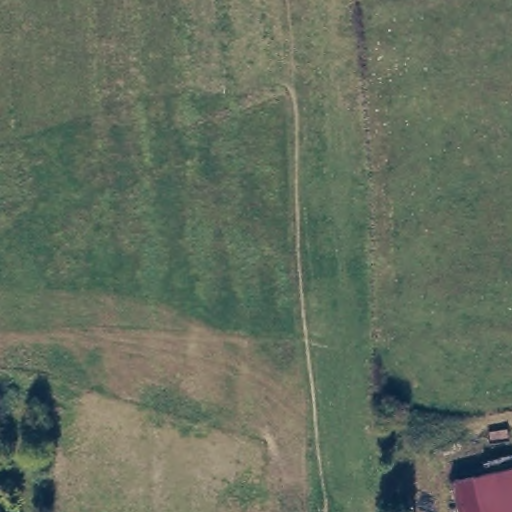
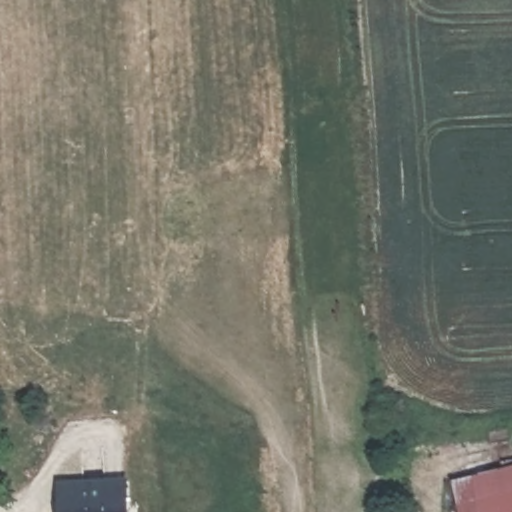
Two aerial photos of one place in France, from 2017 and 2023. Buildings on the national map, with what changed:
unchanged [(512,468),(512,512),(457,512),(450,484),(512,468)]
new [(69,509),(63,509),(63,491),(104,489),(104,484),(126,483),(128,512),(69,512),(69,509)]

